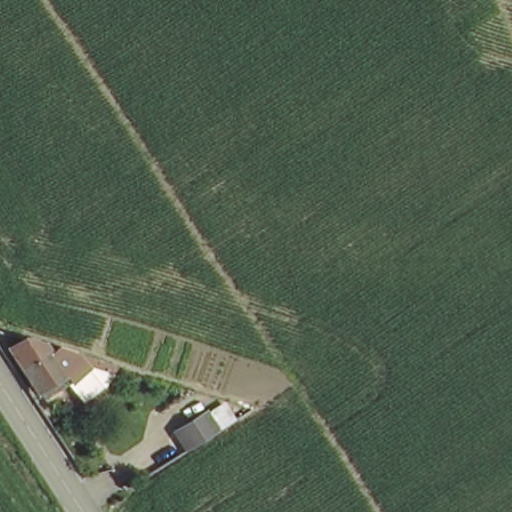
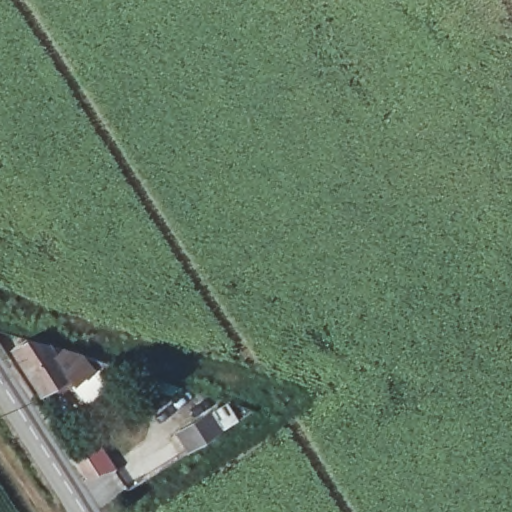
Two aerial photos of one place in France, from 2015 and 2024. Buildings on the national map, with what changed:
unchanged [(26,372),(10,349),(29,339),(62,349),(85,357),(78,361),(84,369),(64,379),(61,371),(39,386),(26,372)]
unchanged [(226,401),(240,422),(188,452),(176,433),(226,401)]

